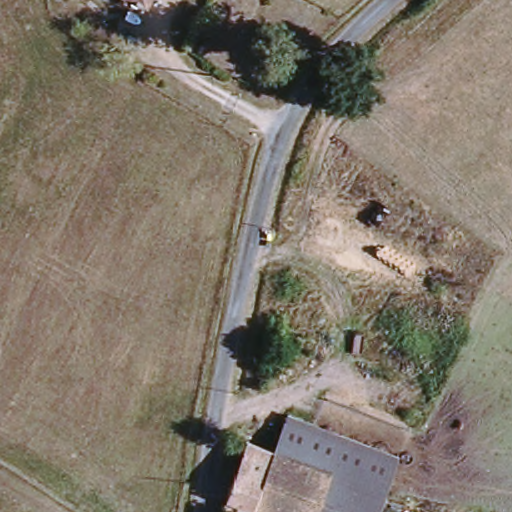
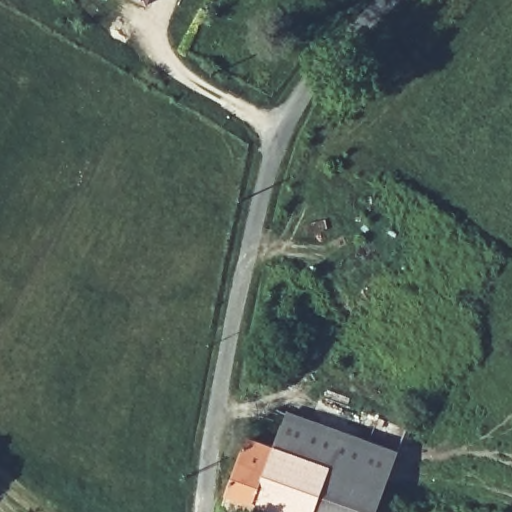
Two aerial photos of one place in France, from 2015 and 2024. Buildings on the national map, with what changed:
unchanged [(147,2),(142,0),(149,0),(147,2)]
unchanged [(271,452),(286,413),(338,433),(324,472),(271,452)]
unchanged [(338,433),(395,455),(374,512),(309,512),(324,472),(338,433)]
unchanged [(278,512),(226,492),(245,442),(271,452),(324,472),(309,512),(278,512)]

